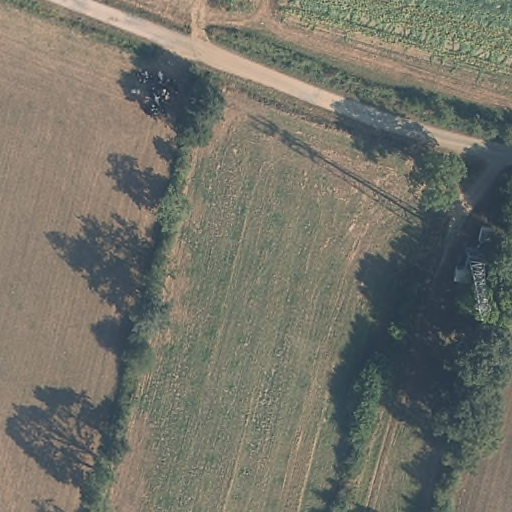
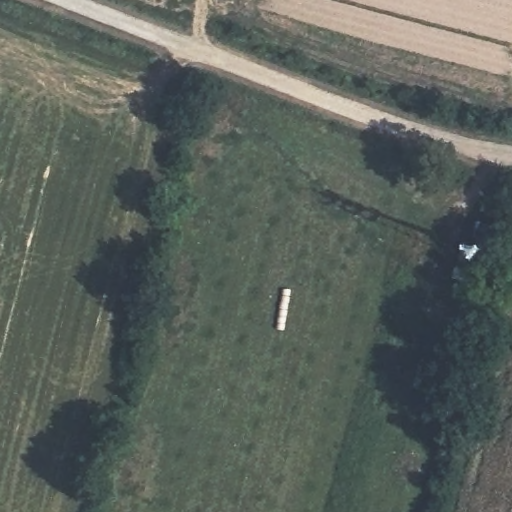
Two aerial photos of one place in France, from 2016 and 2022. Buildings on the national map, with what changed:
unchanged [(476,239),(479,226),(492,229),(489,241),(476,239)]

